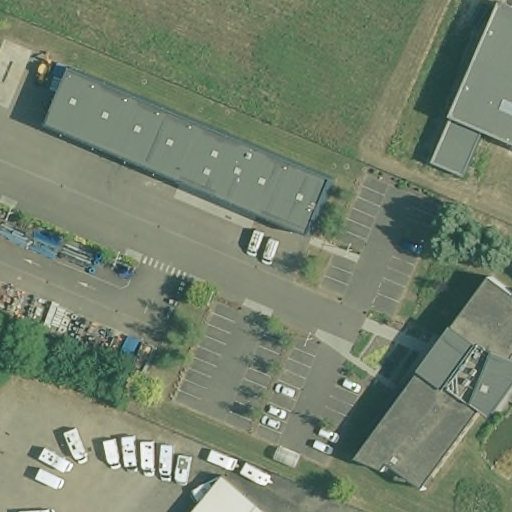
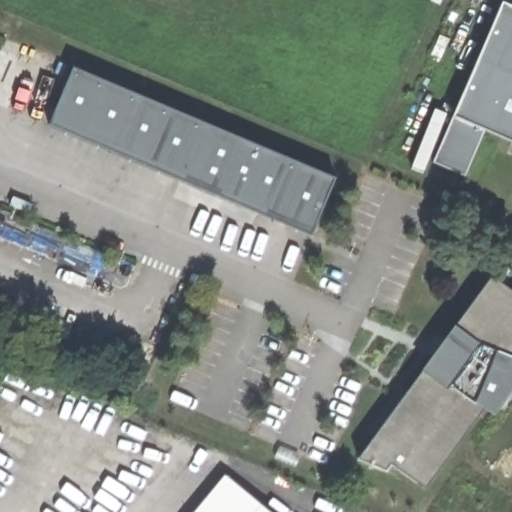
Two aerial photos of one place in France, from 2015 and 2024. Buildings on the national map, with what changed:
unchanged [(434,163),(455,115),(502,3),(512,7),(512,140),(486,129),(466,177),(434,163)]
unchanged [(341,183),(316,240),(53,130),(78,72),(341,183)]
unchanged [(451,342),(452,341),(454,342),(498,284),(495,283),(496,281),(512,293),(512,367),(507,375),(509,377),(509,378),(512,379),(498,412),(492,410),(489,408),(436,480),(429,475),(421,486),(396,468),(390,475),(362,463),(363,462),(366,464),(382,441),(375,435),(406,394),(413,399),(436,368),(434,366),(434,365),(437,367),(439,364),(437,362),(444,353),(446,354),(454,344),(451,342)]
unchanged [(269,512),(196,512),(226,476),(269,512)]

